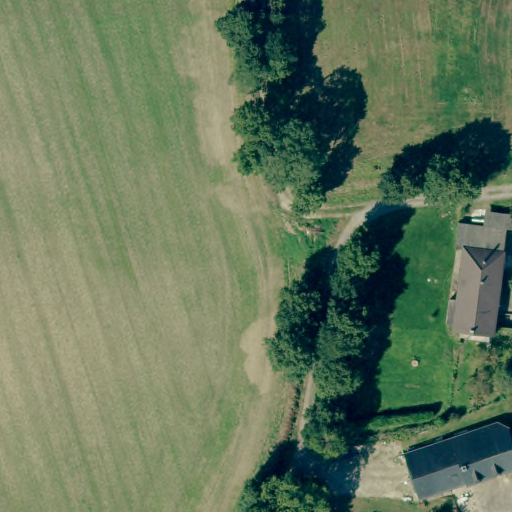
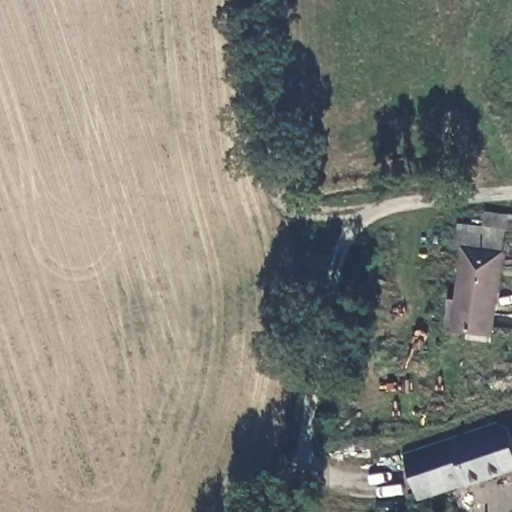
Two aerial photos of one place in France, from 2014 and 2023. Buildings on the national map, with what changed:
unchanged [(461,323),(445,322),(447,300),(463,301),(468,250),(454,249),(457,222),(477,223),(477,212),(507,209),(512,208),(512,230),(504,229),(491,332),(460,330),(461,323)]
unchanged [(459,485),(459,482),(430,492),(412,497),(397,452),(490,423),(493,424),(500,427),(508,451),(512,465),(512,468),(499,471),(459,485)]

